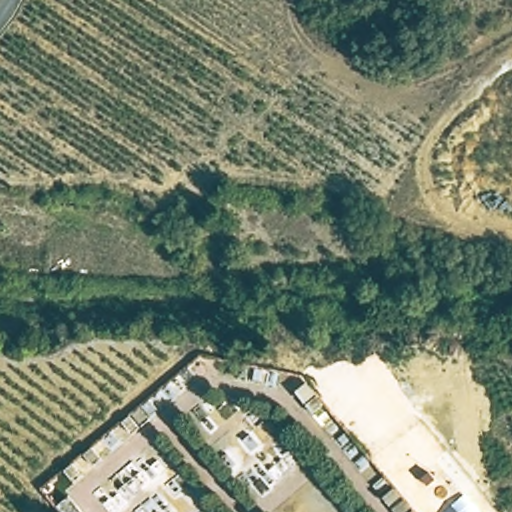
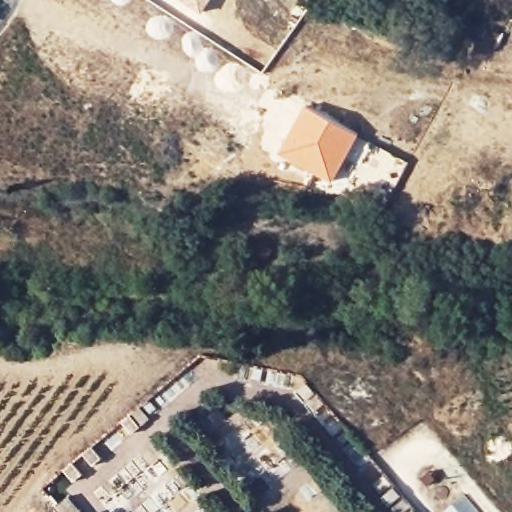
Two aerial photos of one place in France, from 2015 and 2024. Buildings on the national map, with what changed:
new [(203,12),(183,0),(211,0),(203,12)]
new [(304,105),(358,134),(331,183),(277,154),(304,105)]
new [(443,512),(462,495),(478,512),(443,512)]

